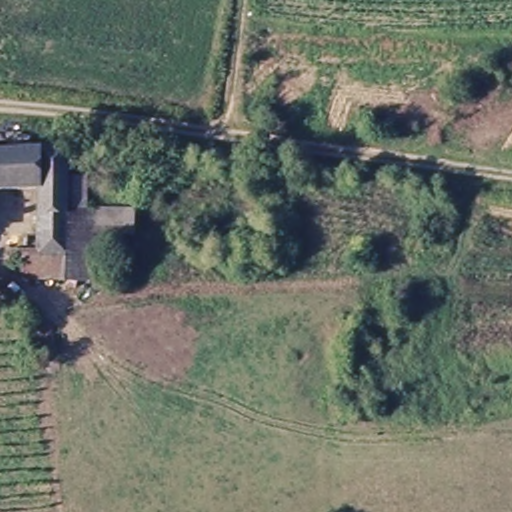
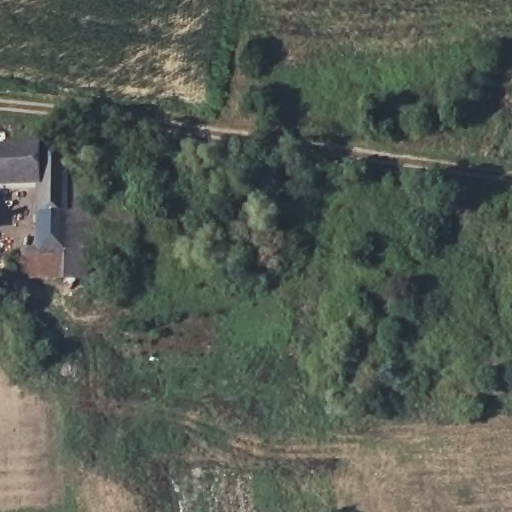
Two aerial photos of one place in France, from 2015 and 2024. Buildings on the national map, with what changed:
unchanged [(70,151),(70,186),(91,186),(91,229),(100,229),(97,289),(42,287),(7,285),(6,253),(22,253),(22,263),(35,263),(37,199),(0,199),(0,149),(70,151)]

